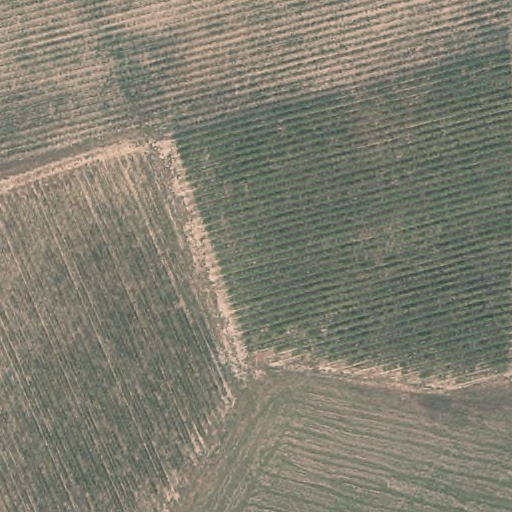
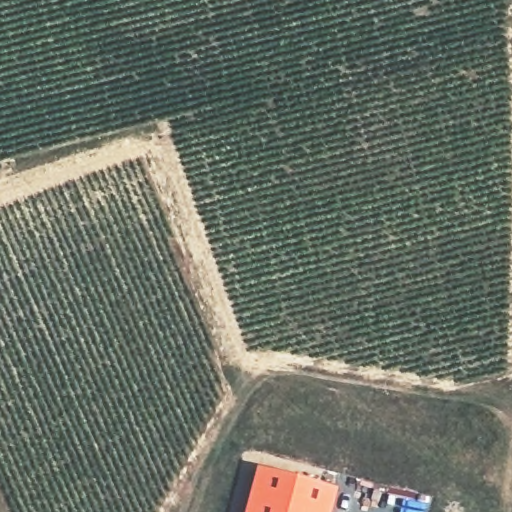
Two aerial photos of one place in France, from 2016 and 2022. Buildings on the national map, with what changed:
new [(332,512),(245,512),(257,469),(337,490),(332,512)]

